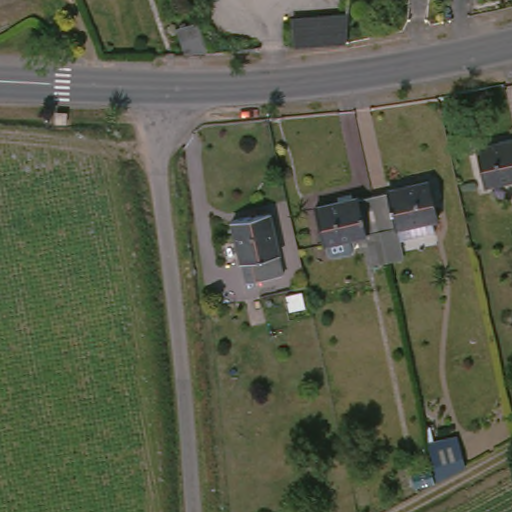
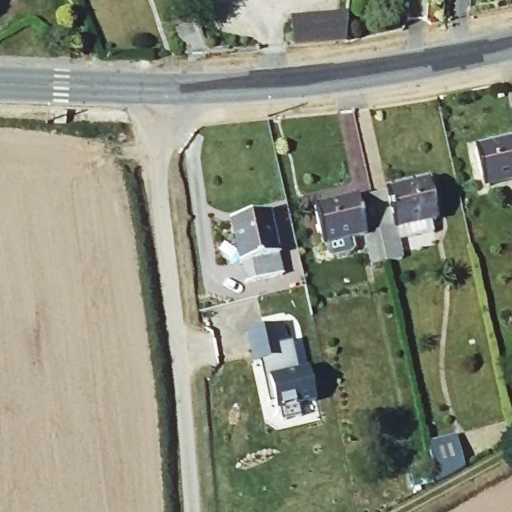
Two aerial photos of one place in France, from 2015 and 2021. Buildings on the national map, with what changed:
unchanged [(183,56),(170,27),(193,14),(204,41),(228,38),(229,51),(228,52),(209,53),(183,56)]
unchanged [(341,17),(338,42),(286,48),(284,22),(341,17)]
unchanged [(481,188),(469,143),(509,134),(511,138),(512,138),(512,180),(481,188)]
unchanged [(438,220),(394,231),(401,257),(386,260),(371,197),(382,194),(381,190),(427,178),(438,220)]
unchanged [(386,260),(369,265),(363,239),(321,249),(310,208),(356,196),(357,201),(371,197),(386,260)]
unchanged [(284,272),(246,284),(241,264),(236,265),(223,223),(266,210),(284,272)]
new [(284,323),(288,342),(296,341),(301,371),(311,369),(318,400),(301,403),(303,416),(283,420),(280,407),(278,408),(276,401),(271,402),(263,360),(258,361),(251,329),(284,323)]
unchanged [(408,473),(430,465),(423,441),(456,433),(464,470),(413,491),(408,473)]

